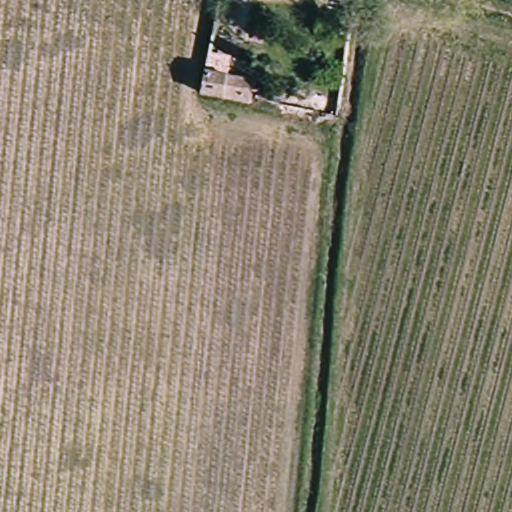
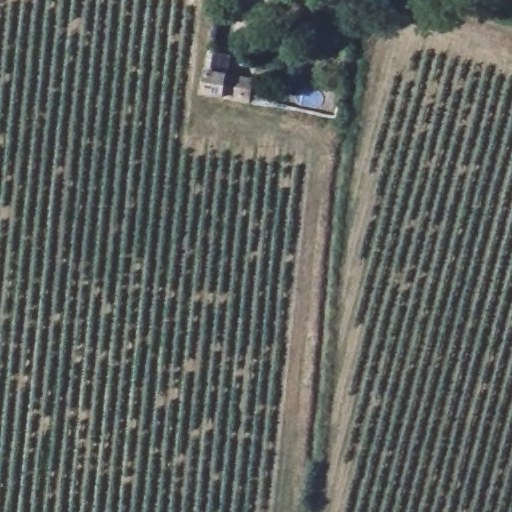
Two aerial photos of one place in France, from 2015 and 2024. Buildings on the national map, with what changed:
unchanged [(223,94),(201,90),(205,69),(225,73),(252,79),(250,99),(223,94)]

